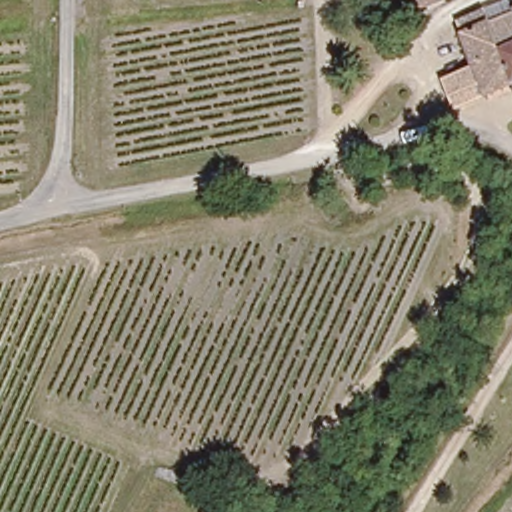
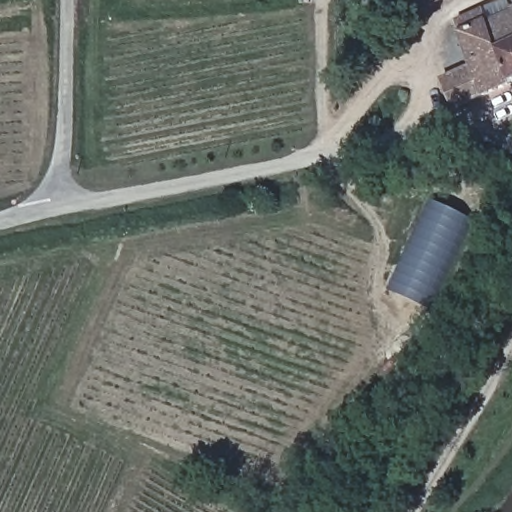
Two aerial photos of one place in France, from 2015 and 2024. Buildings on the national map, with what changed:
unchanged [(423,10),(419,0),(447,0),(423,10)]
unchanged [(474,66),(473,63),(461,33),(453,14),(465,9),(470,7),(488,0),(491,0),(498,17),(512,12),(512,83),(486,96),(474,66)]
unchanged [(474,66),(486,96),(473,102),(429,117),(421,89),(474,66)]
new [(434,312),(390,291),(433,200),(477,221),(434,312)]

